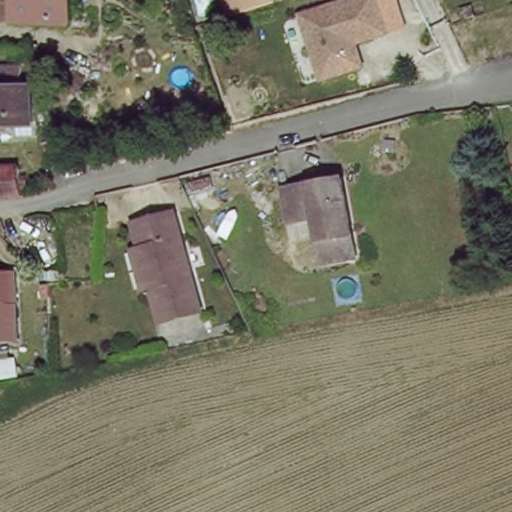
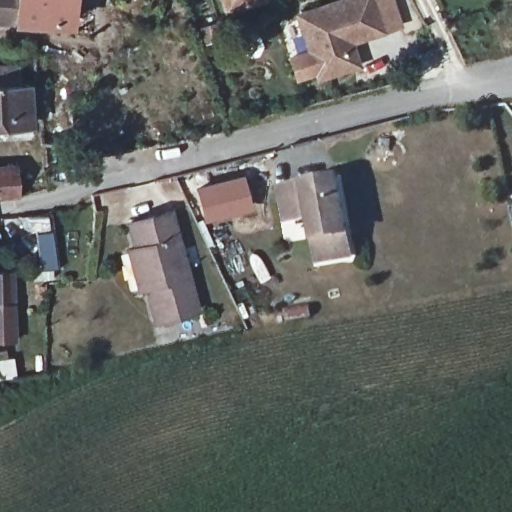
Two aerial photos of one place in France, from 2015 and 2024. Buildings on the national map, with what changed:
unchanged [(0,22),(0,0),(24,0),(21,24),(0,22)]
unchanged [(24,0),(77,0),(77,26),(55,25),(30,24),(21,24),(24,0)]
unchanged [(226,0),(276,0),(232,16),(226,0)]
unchanged [(348,0),(381,0),(390,32),(350,43),(360,73),(324,84),(299,15),(348,0)]
unchanged [(22,134),(22,127),(0,129),(0,88),(34,84),(38,119),(40,133),(22,134)]
unchanged [(75,108),(76,139),(45,144),(40,114),(75,108)]
unchanged [(27,194),(0,198),(0,170),(24,165),(27,194)]
unchanged [(335,252),(317,256),(309,215),(283,220),(276,184),(336,171),(348,225),(354,248),(335,252)]
new [(243,174),(253,212),(205,224),(194,187),(243,174)]
unchanged [(140,247),(147,245),(139,221),(179,208),(209,305),(169,318),(158,284),(151,286),(140,247)]
unchanged [(19,314),(19,324),(20,342),(0,342),(0,271),(18,270),(19,314)]

